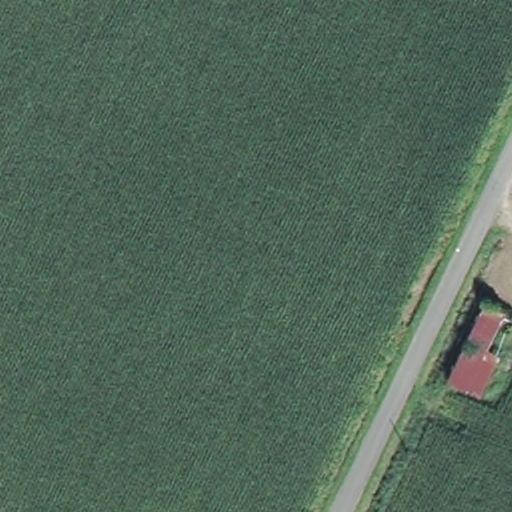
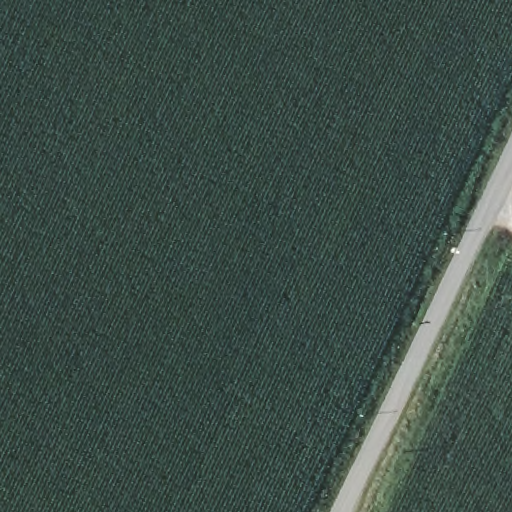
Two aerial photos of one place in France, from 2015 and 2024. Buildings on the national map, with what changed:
demolished [(478,397),(442,381),(482,304),(512,318),(512,329),(478,397)]

